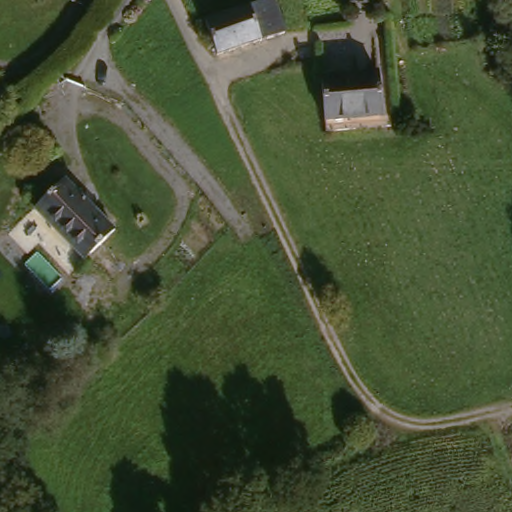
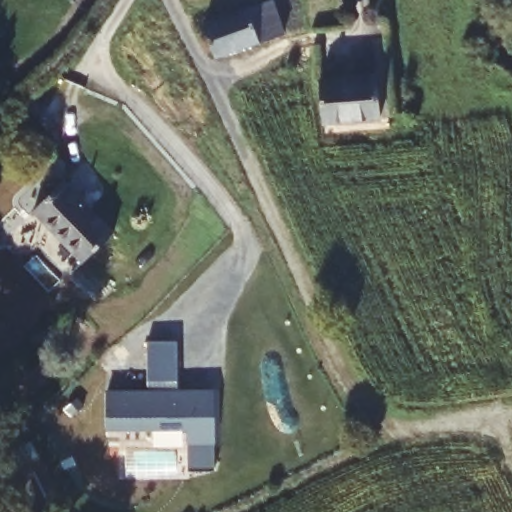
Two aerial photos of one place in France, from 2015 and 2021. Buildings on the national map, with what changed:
unchanged [(276,2),(288,32),(220,55),(210,22),(276,2)]
unchanged [(380,72),(383,115),(328,119),(325,77),(380,72)]
unchanged [(64,185),(113,236),(86,262),(56,232),(53,237),(32,216),(64,185)]
new [(177,343),(179,393),(149,394),(147,343),(177,343)]
new [(189,432),(109,433),(107,395),(149,394),(179,393),(215,393),(216,443),(216,471),(190,472),(190,443),(189,432)]

